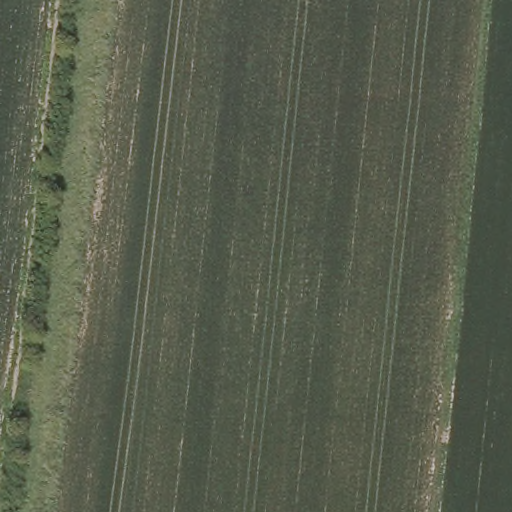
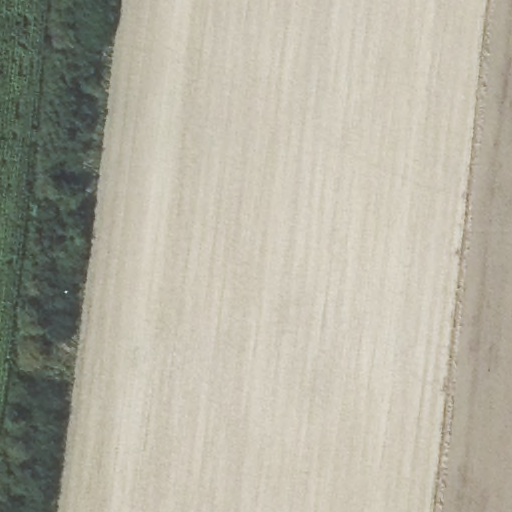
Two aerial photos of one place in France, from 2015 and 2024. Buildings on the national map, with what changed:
[]

